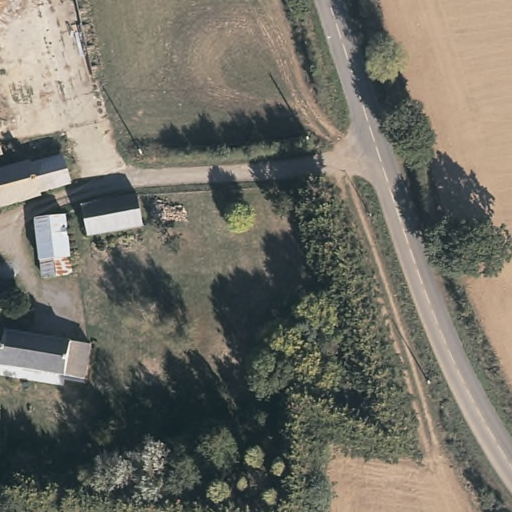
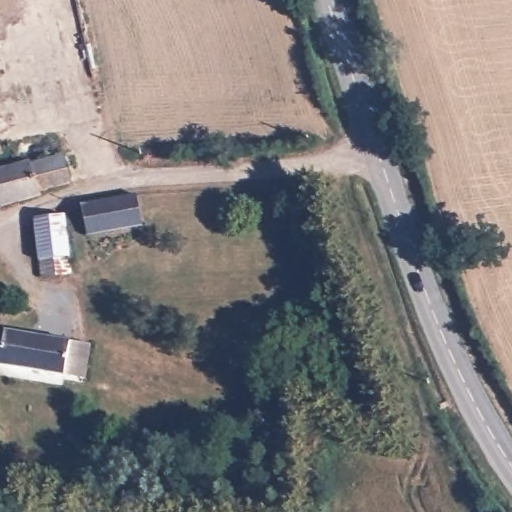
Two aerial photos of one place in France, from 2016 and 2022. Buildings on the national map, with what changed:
unchanged [(0,152),(0,134),(4,151),(0,152)]
unchanged [(32,162),(34,166),(65,158),(73,185),(43,194),(44,199),(0,210),(0,172),(32,162)]
unchanged [(146,226),(90,237),(83,207),(139,196),(146,226)]
unchanged [(75,275),(46,280),(37,220),(66,216),(75,275)]
unchanged [(83,346),(78,380),(0,367),(0,333),(83,346)]

